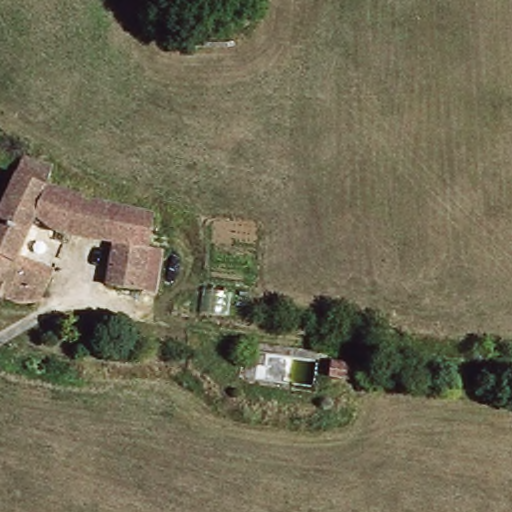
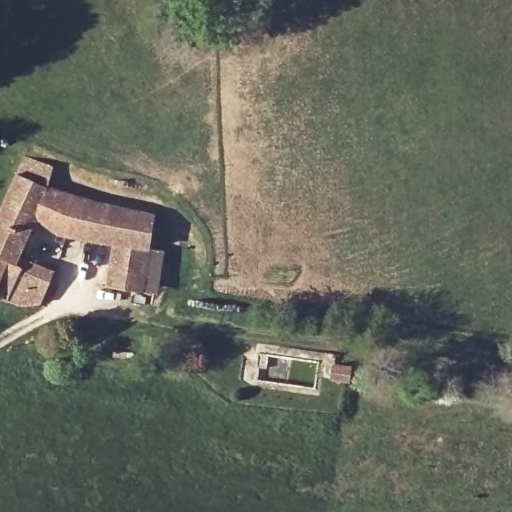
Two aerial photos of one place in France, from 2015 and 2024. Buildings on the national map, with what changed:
unchanged [(0,299),(0,221),(20,174),(23,159),(48,167),(41,187),(155,220),(148,253),(116,247),(61,232),(40,220),(17,262),(51,279),(41,302),(13,304),(0,299)]
unchanged [(140,293),(108,287),(116,247),(148,253),(140,293)]

